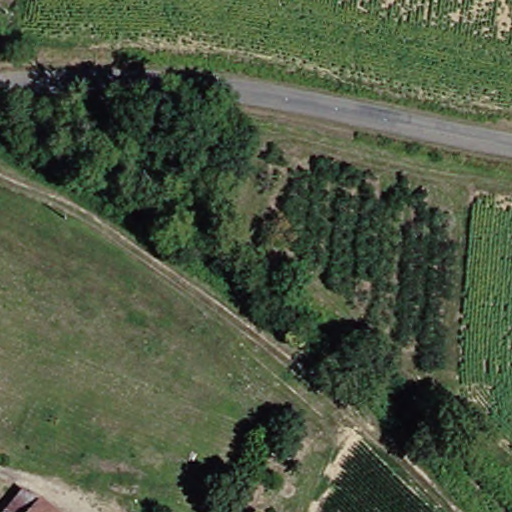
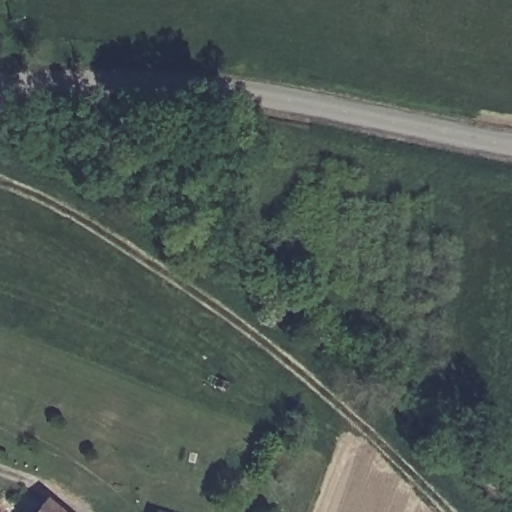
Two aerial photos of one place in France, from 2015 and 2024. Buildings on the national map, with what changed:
unchanged [(56,512),(0,512),(24,485),(56,512)]

